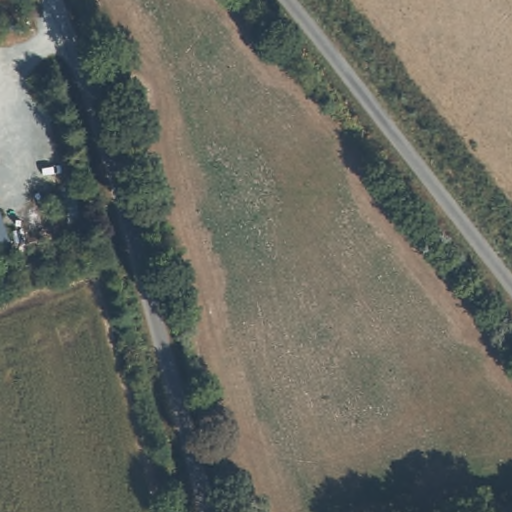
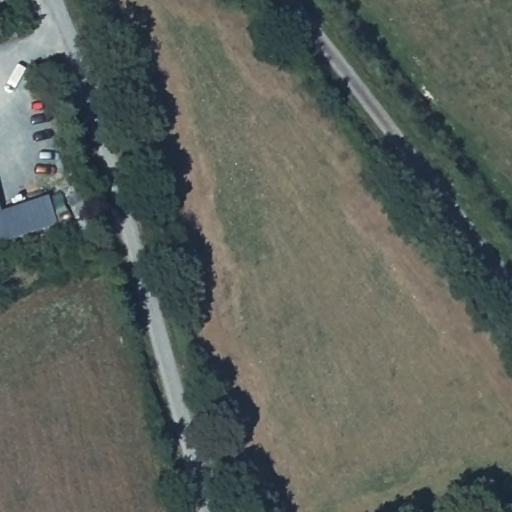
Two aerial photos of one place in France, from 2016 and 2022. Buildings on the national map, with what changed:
new [(4,243),(0,228),(0,211),(51,195),(59,225),(4,243)]
unchanged [(5,246),(0,248),(0,228),(5,246)]

